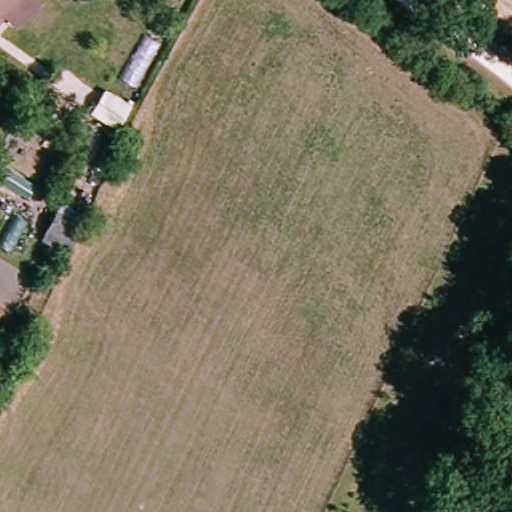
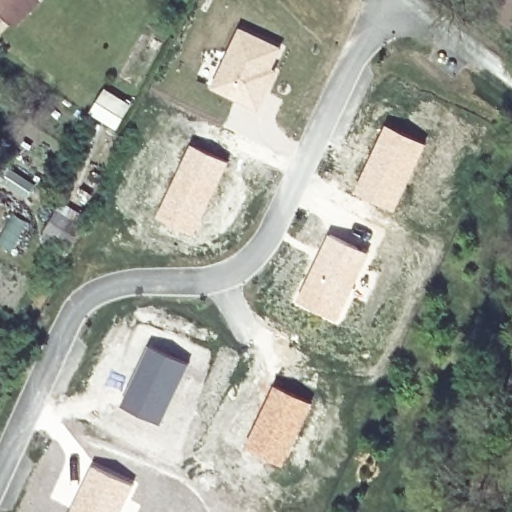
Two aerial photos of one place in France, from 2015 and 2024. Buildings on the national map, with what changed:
unchanged [(0,18),(0,0),(18,0),(0,18)]
new [(239,26),(284,48),(275,69),(278,70),(258,111),(209,89),(239,26)]
new [(104,87),(133,105),(116,130),(89,111),(104,87)]
new [(386,123),(428,143),(396,210),(354,190),(386,123)]
new [(191,143),(229,161),(194,234),(157,217),(191,143)]
unchanged [(79,225),(69,244),(43,231),(53,212),(79,225)]
new [(329,232),(371,252),(357,286),(338,322),(296,300),(329,232)]
new [(148,346),(188,363),(159,424),(121,404),(148,346)]
new [(275,385),(314,402),(284,466),(245,448),(275,385)]
new [(135,485),(121,512),(69,512),(92,465),(135,485)]

